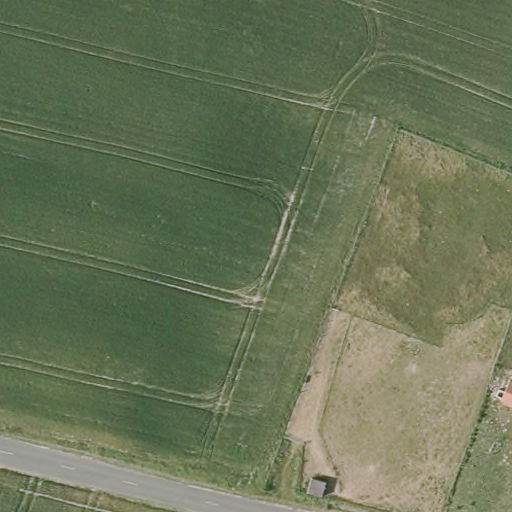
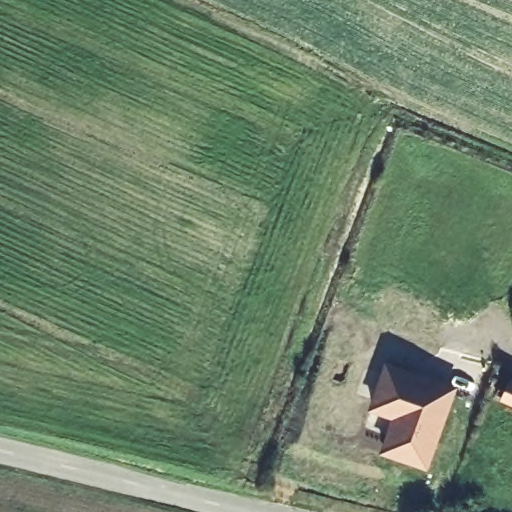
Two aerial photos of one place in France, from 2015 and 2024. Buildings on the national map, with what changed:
new [(369,409),(386,361),(458,387),(428,469),(380,452),(392,417),(369,409)]
new [(501,399),(509,382),(512,383),(512,404),(501,399)]

